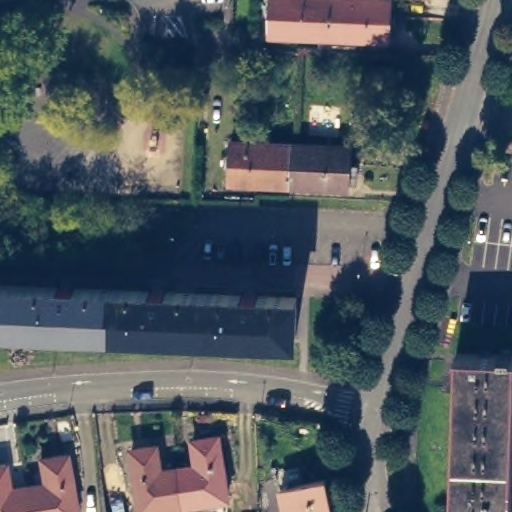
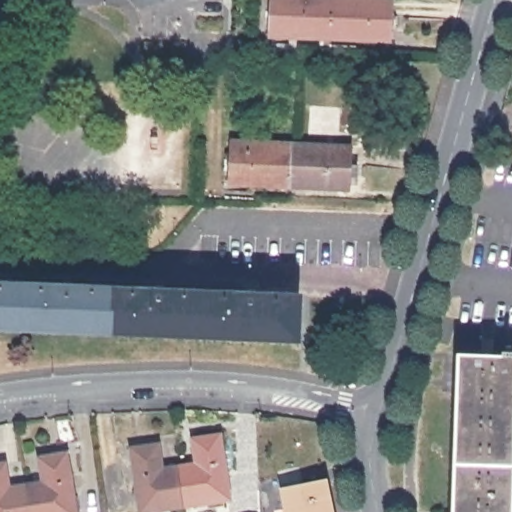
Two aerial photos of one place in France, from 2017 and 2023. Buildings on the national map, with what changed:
unchanged [(271,30),(272,0),(333,0),(331,33),(271,30)]
unchanged [(333,0),(393,0),(391,35),(331,33),(333,0)]
unchanged [(290,181),(230,178),(232,137),(292,139),(290,181)]
unchanged [(352,142),(350,183),(290,181),(292,139),(352,142)]
unchanged [(0,324),(0,284),(294,296),(292,336),(0,324)]
unchanged [(502,354),(502,350),(512,350),(512,512),(453,512),(458,353),(502,354)]
unchanged [(180,462),(198,459),(195,434),(220,430),(230,493),(186,500),(180,462)]
unchanged [(142,506),(133,444),(158,440),(162,465),(180,462),(186,500),(142,506)]
unchanged [(41,453),(66,449),(77,511),(68,512),(32,512),(27,480),(45,477),(41,453)]
unchanged [(0,512),(0,459),(5,459),(9,484),(27,480),(32,512),(0,512)]
unchanged [(327,479),(334,512),(287,512),(282,489),(327,479)]

